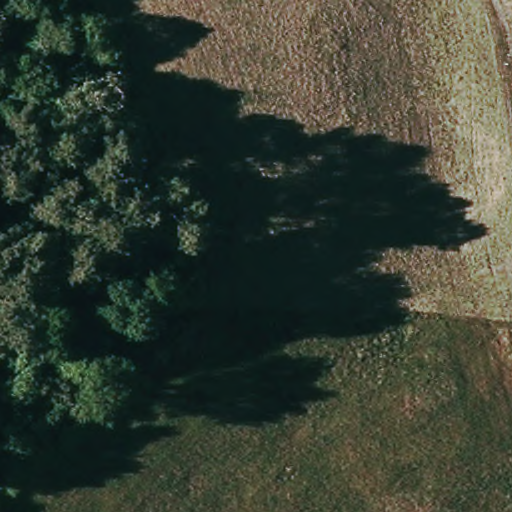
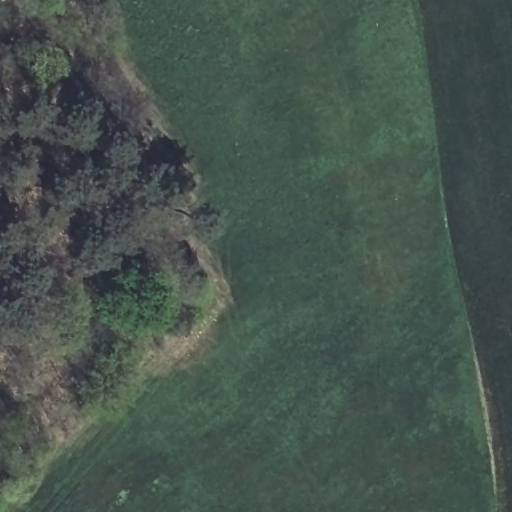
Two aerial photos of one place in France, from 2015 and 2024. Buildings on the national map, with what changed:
[]

